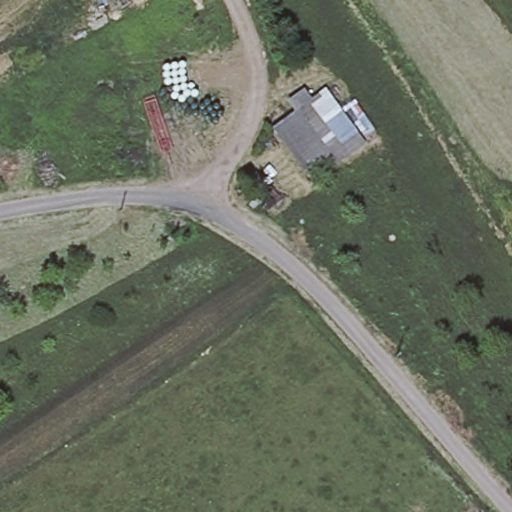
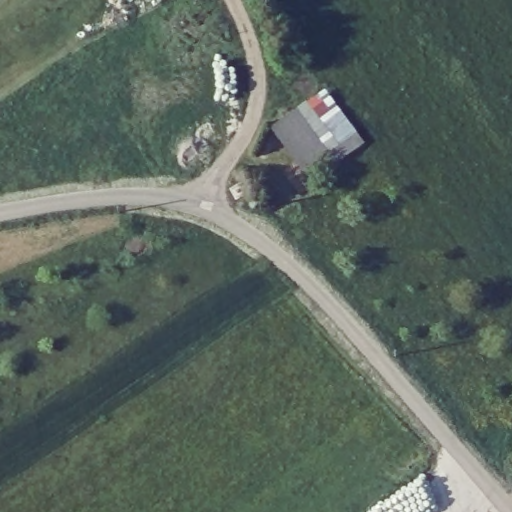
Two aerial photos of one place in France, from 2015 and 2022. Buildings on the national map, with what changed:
unchanged [(354,133),(306,170),(275,128),(325,92),(354,133)]

